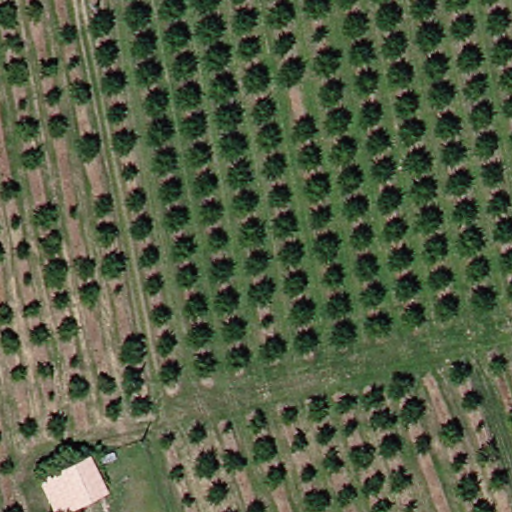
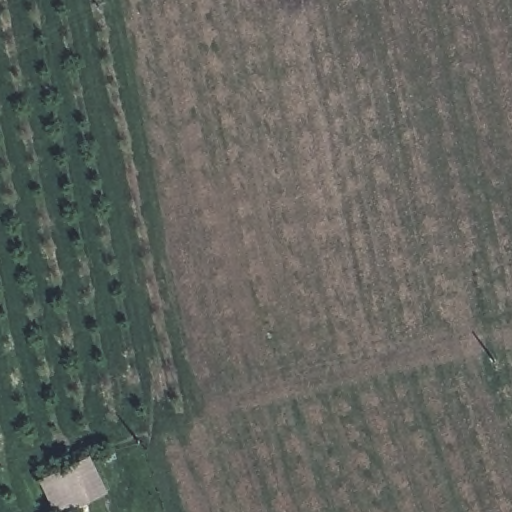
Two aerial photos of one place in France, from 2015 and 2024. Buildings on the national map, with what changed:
unchanged [(56,512),(42,486),(85,460),(100,492),(57,512),(56,512)]

